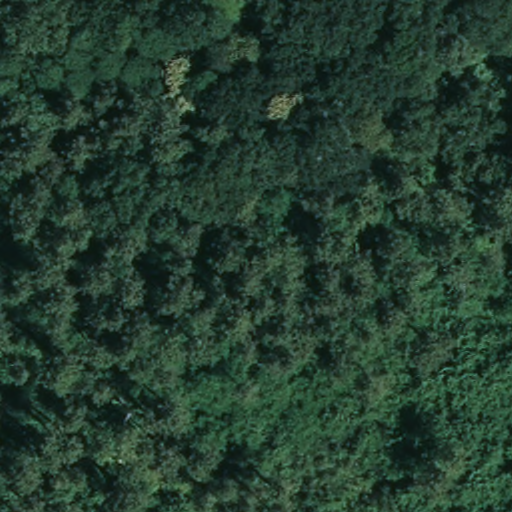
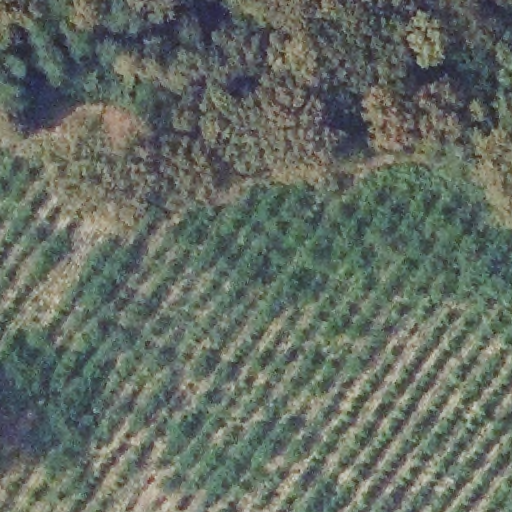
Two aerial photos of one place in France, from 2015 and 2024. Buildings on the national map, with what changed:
[]

